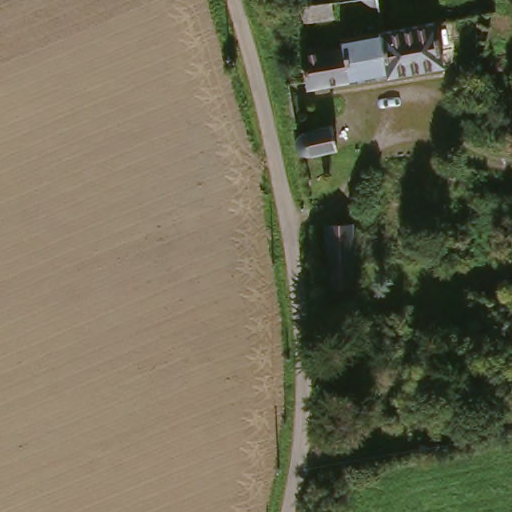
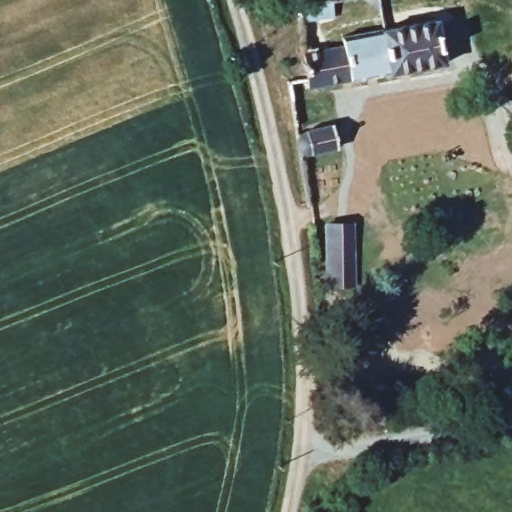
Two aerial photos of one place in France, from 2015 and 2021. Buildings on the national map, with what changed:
unchanged [(376,12),(350,0),(374,0),(376,12)]
unchanged [(466,10),(484,6),(488,5),(500,36),(487,46),(479,53),(466,10)]
unchanged [(319,25),(294,31),(290,13),(315,7),(319,25)]
unchanged [(451,58),(317,94),(313,85),(307,59),(350,46),(347,40),(391,28),(440,20),(442,19),(451,58)]
unchanged [(302,128),(334,120),(341,146),(307,155),(302,128)]
unchanged [(360,283),(335,285),(334,225),(359,225),(360,241),(360,283)]

